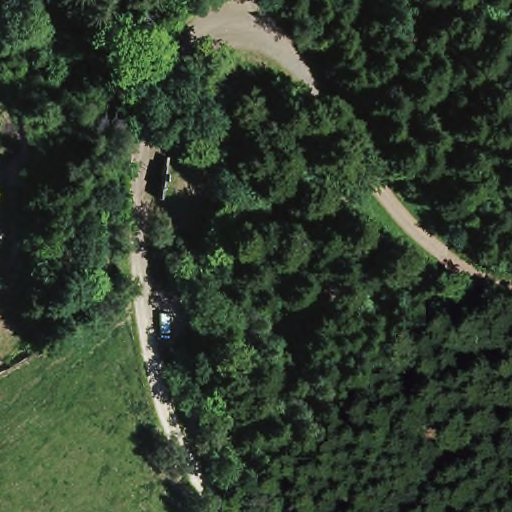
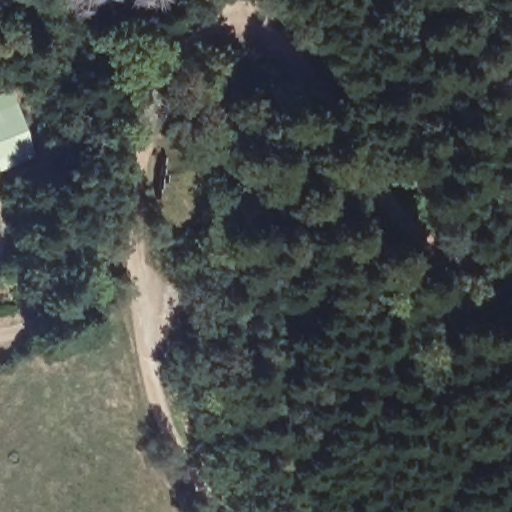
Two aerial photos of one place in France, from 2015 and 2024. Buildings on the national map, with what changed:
new [(18,104),(35,155),(0,167),(0,109),(18,104)]
new [(2,239),(0,240),(0,236),(2,239)]

